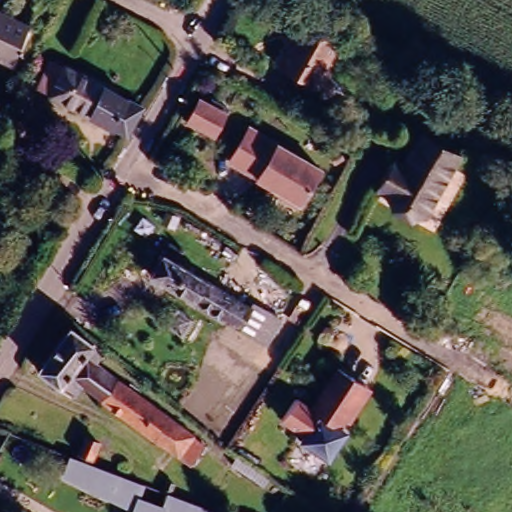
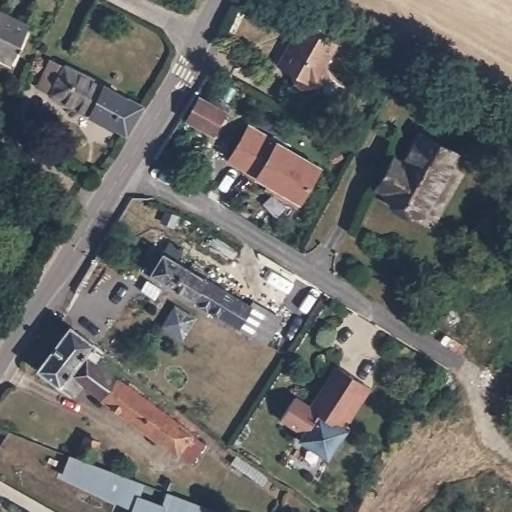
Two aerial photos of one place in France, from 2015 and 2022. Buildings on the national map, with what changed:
unchanged [(10,63),(0,59),(0,12),(28,25),(10,63)]
unchanged [(323,63),(328,80),(294,90),(289,74),(274,65),(286,44),(298,23),(304,26),(334,43),(323,63)]
unchanged [(29,87),(44,59),(59,66),(138,109),(123,135),(45,94),(29,87)]
unchanged [(198,98),(226,113),(214,135),(186,120),(198,98)]
unchanged [(261,187),(263,183),(251,176),(251,175),(223,159),(241,125),(314,165),(294,200),(291,204),(261,187)]
unchanged [(397,161),(407,167),(425,135),(461,156),(427,216),(387,193),(381,189),(397,161)]
unchanged [(179,256),(173,265),(246,309),(248,304),(278,322),(261,349),(146,278),(165,247),(179,256)]
unchanged [(191,464),(163,443),(82,383),(73,394),(38,367),(70,324),(94,341),(84,354),(177,423),(206,444),(191,464)]
unchanged [(338,433),(321,460),(293,443),(297,437),(274,422),(287,400),(303,410),(329,369),(358,387),(362,390),(341,424),(336,421),(332,429),(338,433)]
unchanged [(84,434),(101,441),(93,462),(159,486),(164,475),(177,481),(173,492),(218,508),(216,512),(129,512),(130,509),(58,476),(68,454),(74,456),(84,434)]

